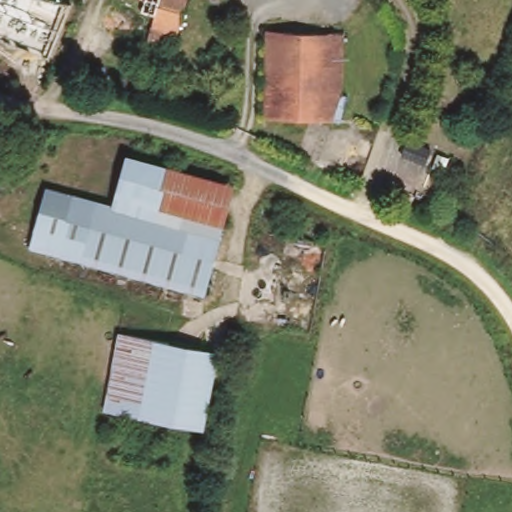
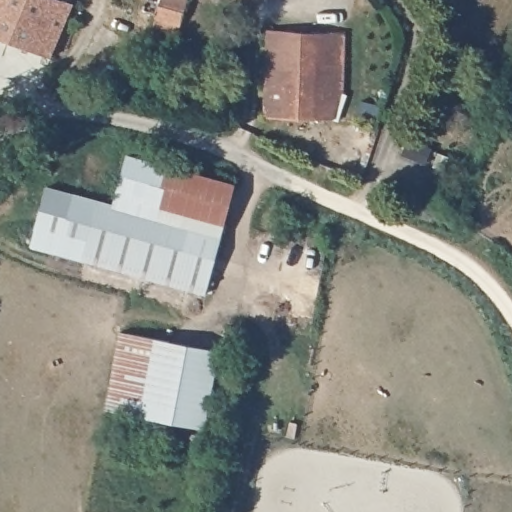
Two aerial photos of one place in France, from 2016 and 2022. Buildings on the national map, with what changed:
demolished [(51,56),(0,37),(0,0),(58,0),(71,4),(51,56)]
unchanged [(141,10),(144,0),(159,0),(153,14),(141,10)]
unchanged [(173,33),(168,31),(163,45),(147,40),(151,21),(153,14),(159,0),(184,0),(173,33)]
unchanged [(359,30),(358,86),(347,113),(260,112),(262,25),(359,30)]
unchanged [(123,154),(232,186),(219,236),(109,209),(110,205),(123,154)]
unchanged [(110,205),(109,209),(219,236),(203,293),(29,246),(45,188),(110,205)]
unchanged [(221,353),(205,428),(107,409),(121,335),(221,353)]

